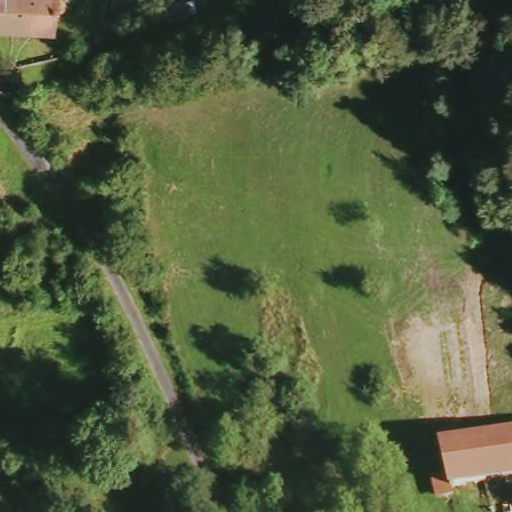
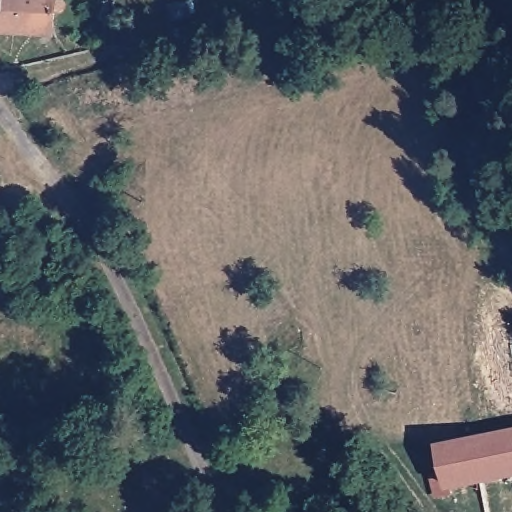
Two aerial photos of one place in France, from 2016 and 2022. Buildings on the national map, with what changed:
unchanged [(59,8),(70,8),(69,20),(58,20),(57,40),(0,37),(0,0),(59,0),(59,8)]
unchanged [(454,492),(441,493),(438,477),(450,471),(447,445),(512,431),(512,473),(453,485),(454,492)]

